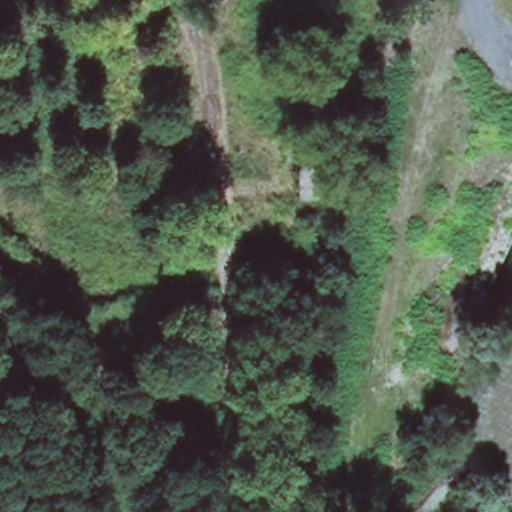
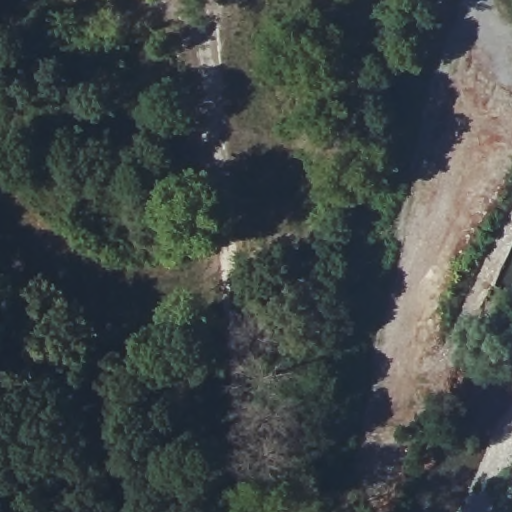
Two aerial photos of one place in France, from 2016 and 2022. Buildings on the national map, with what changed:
unchanged [(321,158),(322,190),(300,194),(297,158),(321,158)]

